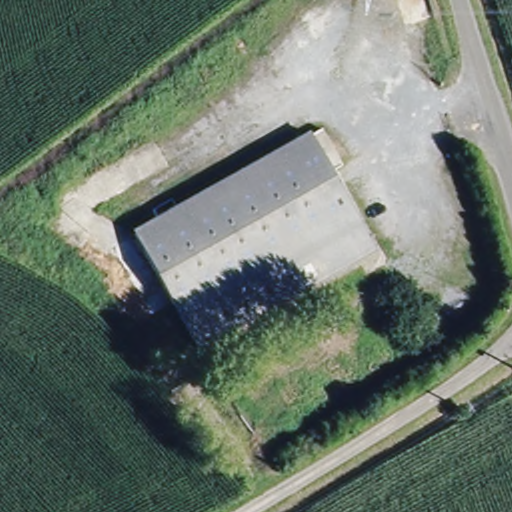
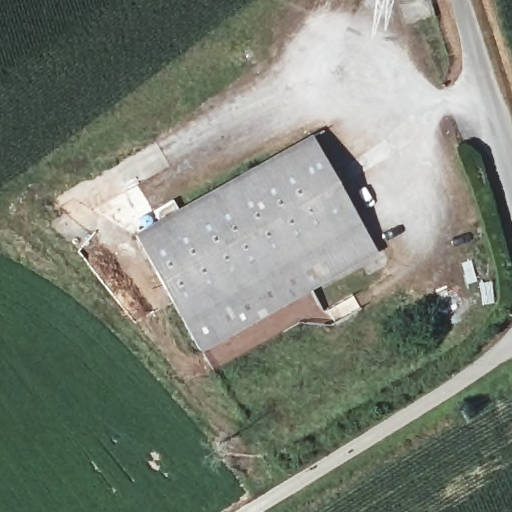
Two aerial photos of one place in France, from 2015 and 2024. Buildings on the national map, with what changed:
unchanged [(202,347),(138,232),(312,134),(374,247),(202,347)]

